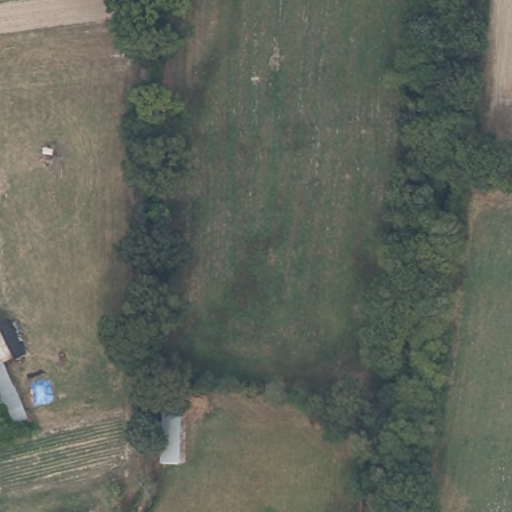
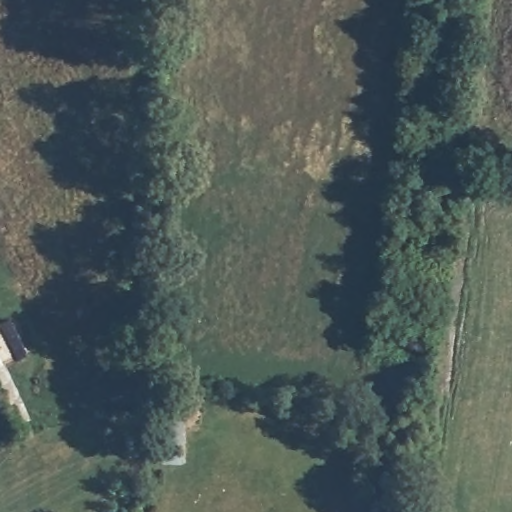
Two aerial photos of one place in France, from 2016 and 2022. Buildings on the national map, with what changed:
unchanged [(9,318),(26,354),(6,363),(30,418),(10,428),(0,405),(0,323),(9,318)]

